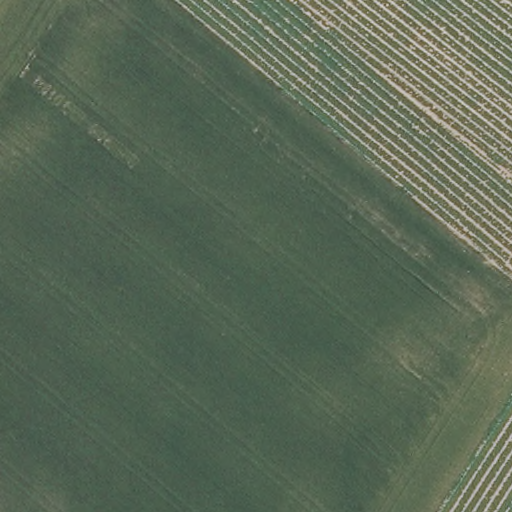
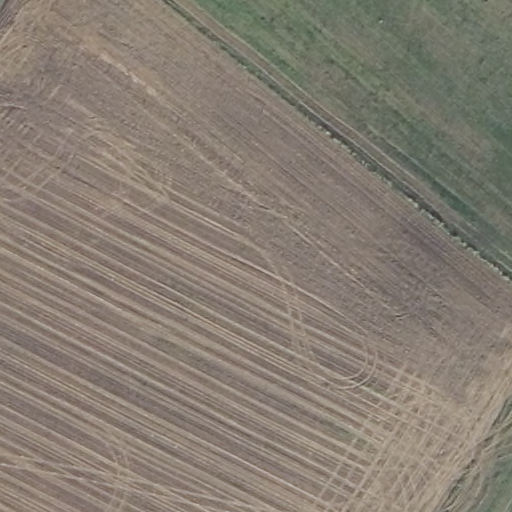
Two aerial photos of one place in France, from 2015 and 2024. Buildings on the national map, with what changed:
[]

